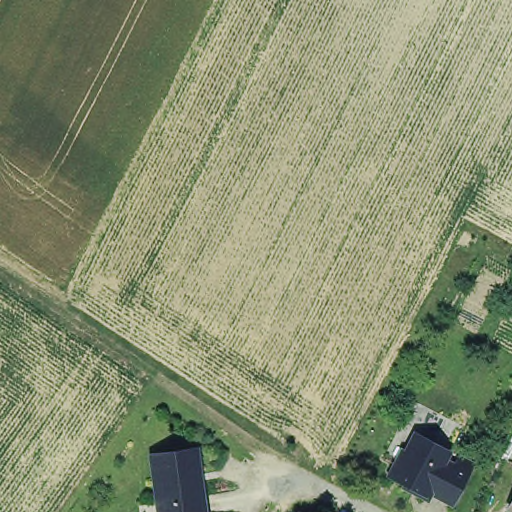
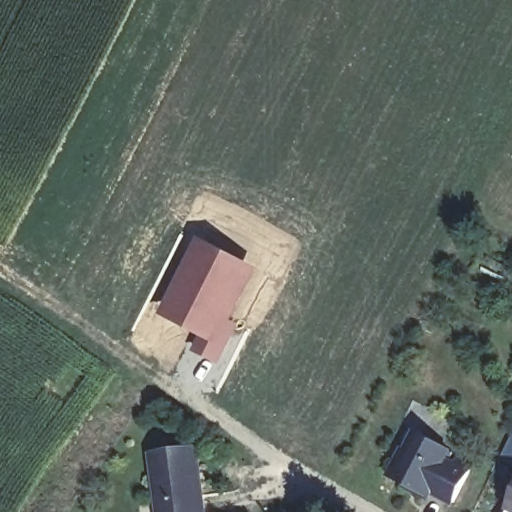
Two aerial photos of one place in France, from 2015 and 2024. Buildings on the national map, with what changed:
new [(199,347),(206,331),(170,313),(207,239),(266,265),(239,322),(243,323),(225,359),(199,347)]
unchanged [(475,461),(453,502),(432,492),(427,499),(387,476),(411,424),(475,461)]
unchanged [(196,445),(205,512),(158,512),(154,450),(196,445)]

